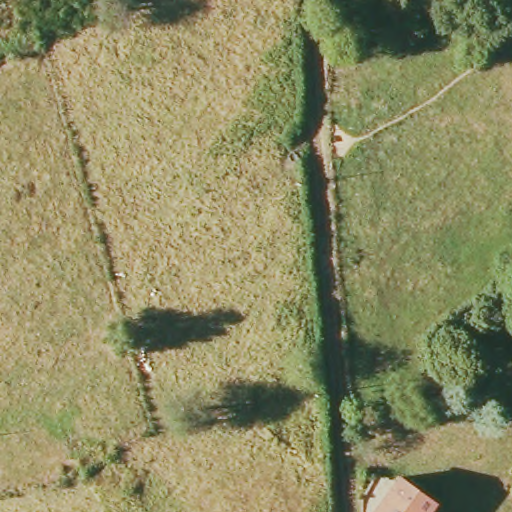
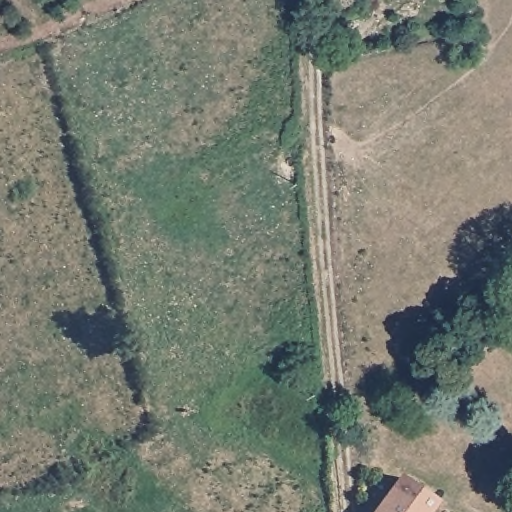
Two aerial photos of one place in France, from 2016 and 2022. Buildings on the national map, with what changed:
unchanged [(436,506),(431,512),(376,512),(401,479),(436,506)]

